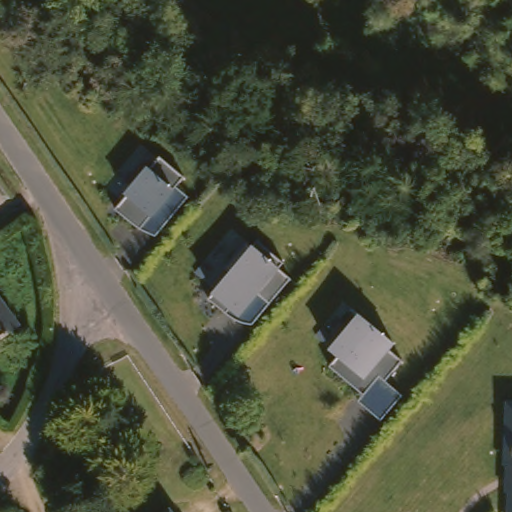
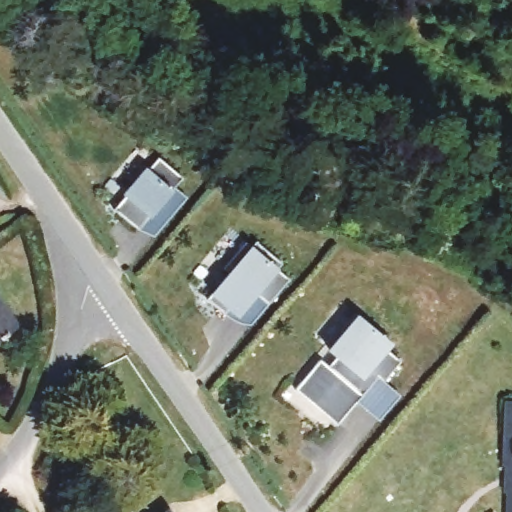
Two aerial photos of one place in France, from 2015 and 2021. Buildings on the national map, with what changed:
unchanged [(155,237),(139,229),(115,209),(125,193),(148,167),(158,157),(184,179),(176,188),(188,197),(155,237)]
unchanged [(251,326),(237,321),(225,313),(208,298),(212,292),(252,245),(258,240),(284,263),(278,270),(291,279),(251,326)]
unchanged [(1,293),(25,327),(0,344),(0,294),(1,293)]
unchanged [(385,382),(403,396),(382,422),(357,402),(363,394),(329,367),(337,356),(328,348),(358,312),(395,342),(388,351),(401,361),(385,382)]
new [(363,394),(357,402),(339,425),(296,390),(320,361),(329,367),(363,394)]
unchanged [(507,448),(504,448),(504,406),(512,406),(512,468),(507,468),(507,448)]
unchanged [(512,512),(510,512),(510,492),(512,492),(512,512)]
unchanged [(168,512),(163,512),(167,510),(168,512)]

